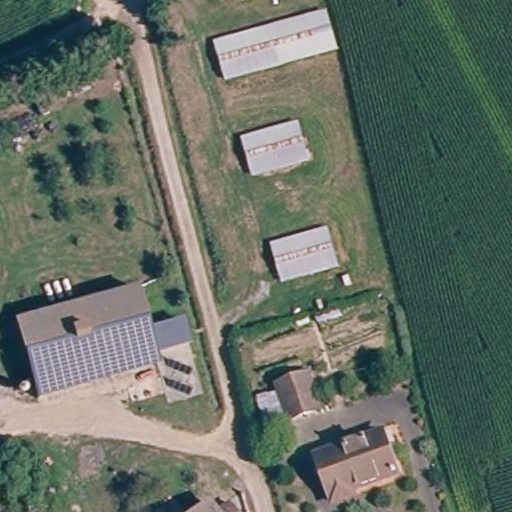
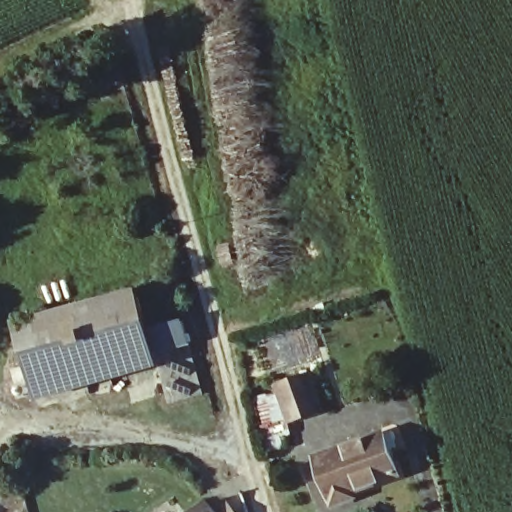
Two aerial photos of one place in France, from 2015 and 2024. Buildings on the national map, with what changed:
demolished [(325,10),(336,48),(222,81),(212,41),(325,10)]
demolished [(299,121),(308,160),(253,177),(240,138),(299,121)]
unchanged [(324,226),(336,268),(281,283),(268,243),(324,226)]
unchanged [(136,287),(156,370),(35,398),(16,316),(136,287)]
unchanged [(318,408),(286,416),(277,381),(309,373),(318,408)]
unchanged [(388,432),(399,472),(352,486),(354,493),(333,499),(320,452),(388,432)]
unchanged [(231,512),(219,512),(227,506),(231,512)]
unchanged [(206,512),(196,512),(202,507),(206,512)]

